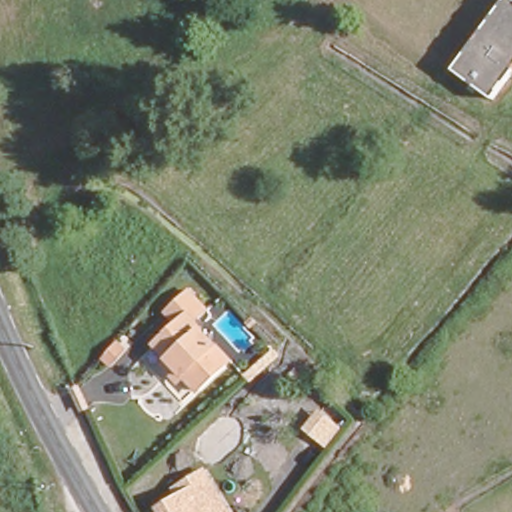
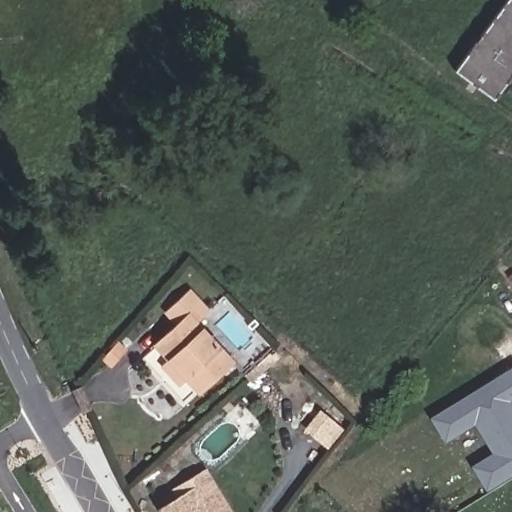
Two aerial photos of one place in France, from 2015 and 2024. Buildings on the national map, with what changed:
unchanged [(489,97),(449,70),(501,0),(512,0),(512,66),(489,97)]
unchanged [(169,385),(175,378),(159,362),(180,341),(169,331),(193,307),(212,325),(204,332),(235,362),(240,367),(203,405),(199,402),(189,391),(182,397),(169,385)]
unchanged [(103,355),(107,351),(119,361),(108,374),(107,375),(95,365),(103,355)]
new [(512,372),(512,472),(489,486),(477,466),(484,462),(464,430),(448,439),(436,419),(512,372)]
unchanged [(200,478),(220,512),(201,512),(186,487),(200,478)]
unchanged [(151,508),(186,487),(201,512),(153,512),(151,508)]

